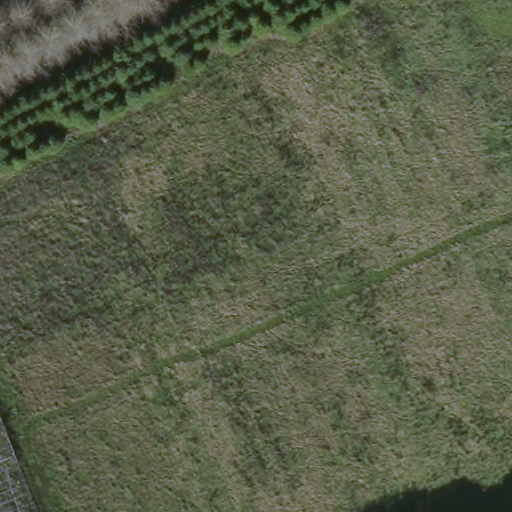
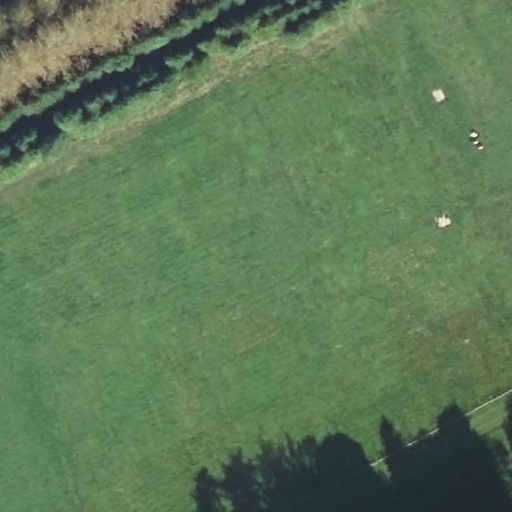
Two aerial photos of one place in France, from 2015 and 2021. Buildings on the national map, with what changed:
demolished [(0,512),(0,407),(41,512),(0,512)]

